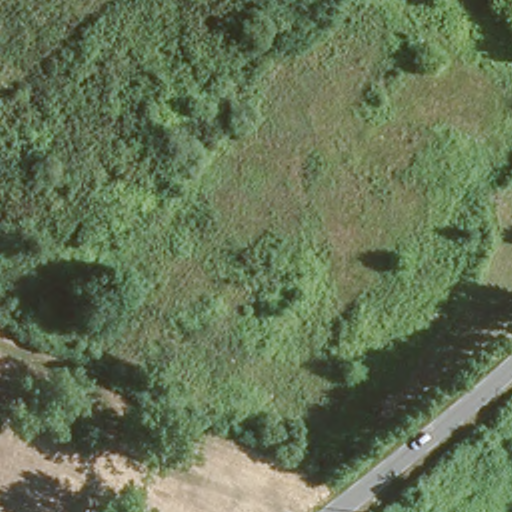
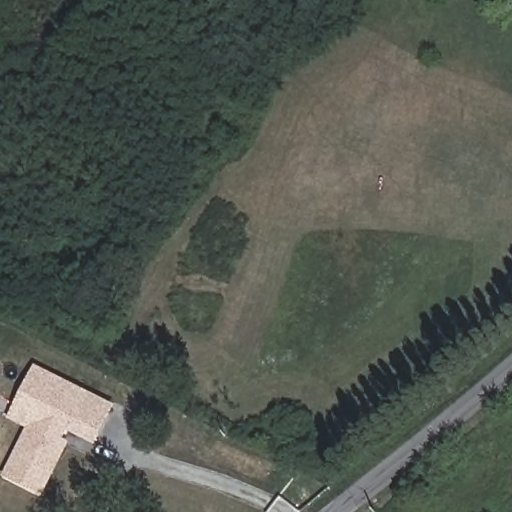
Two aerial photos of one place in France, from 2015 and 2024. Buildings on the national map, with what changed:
new [(67,432),(64,438),(71,442),(42,498),(2,478),(27,430),(8,420),(35,366),(115,406),(95,446),(67,432)]

